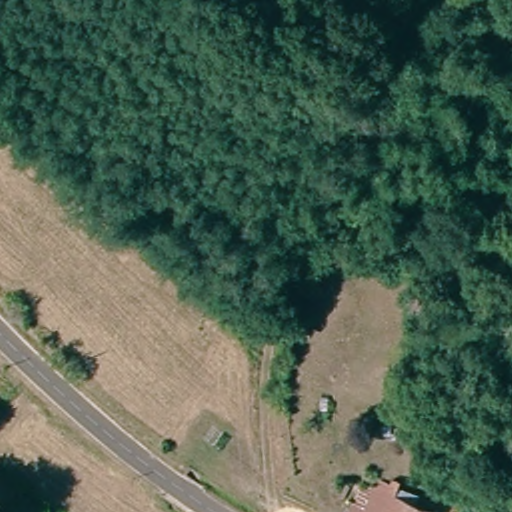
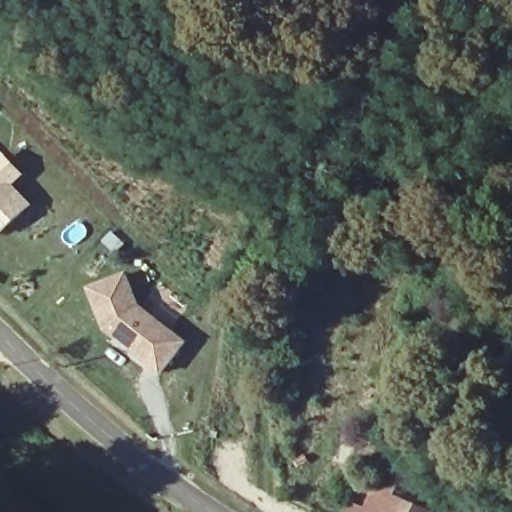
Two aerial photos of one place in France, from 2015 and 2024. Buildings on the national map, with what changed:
new [(2,158),(20,175),(12,184),(32,203),(2,233),(0,231),(0,160),(2,158)]
new [(180,351),(164,373),(126,345),(114,336),(107,332),(89,291),(125,275),(138,306),(171,330),(186,341),(180,351)]
unchanged [(435,506),(434,512),(351,512),(360,483),(435,506)]

